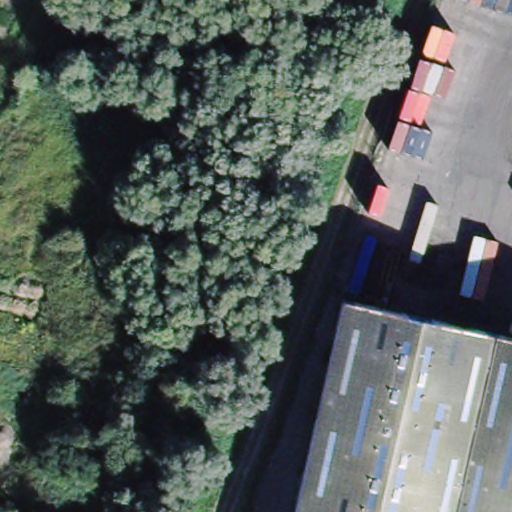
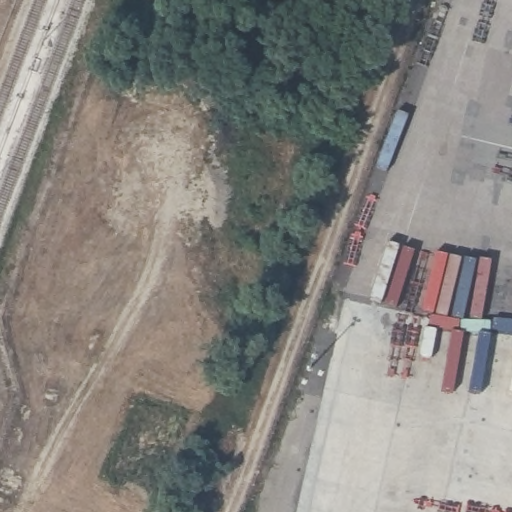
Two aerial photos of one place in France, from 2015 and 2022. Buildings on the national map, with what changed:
demolished [(512,334),(512,512),(296,512),(345,296),(512,334)]

